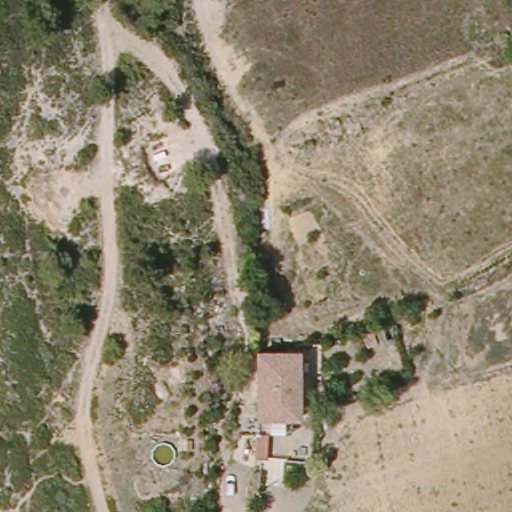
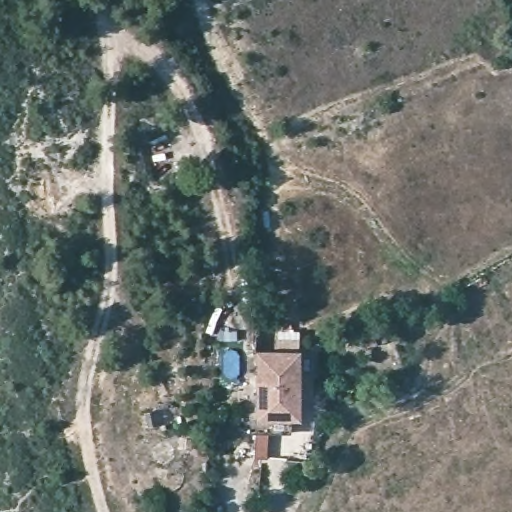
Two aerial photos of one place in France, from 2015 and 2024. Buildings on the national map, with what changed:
unchanged [(295,353),(293,416),(257,416),(257,352),(295,353)]

